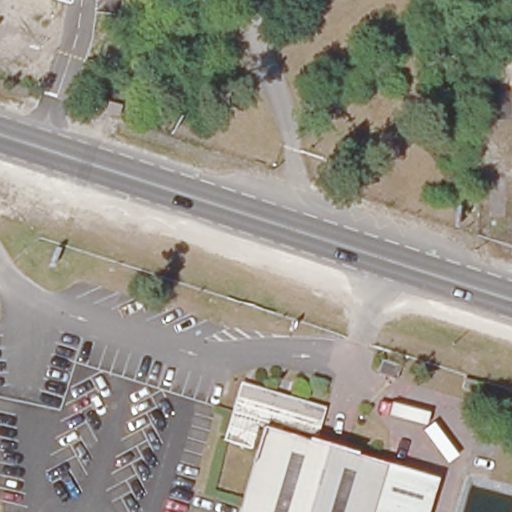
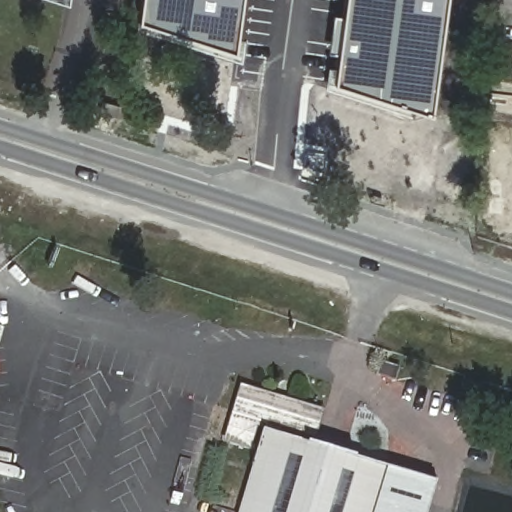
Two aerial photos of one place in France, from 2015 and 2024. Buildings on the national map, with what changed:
unchanged [(69,5),(55,0),(70,0),(69,5)]
new [(138,22),(141,0),(243,0),(235,53),(138,22)]
new [(432,115),(333,83),(344,0),(447,0),(432,115)]
unchanged [(400,367),(397,379),(380,375),(383,362),(400,367)]
unchanged [(479,385),(474,399),(456,393),(460,379),(479,385)]
unchanged [(234,420),(248,385),(335,408),(324,450),(440,486),(432,512),(241,512),(266,430),(234,420)]
demolished [(159,401),(152,430),(125,423),(133,395),(159,401)]

